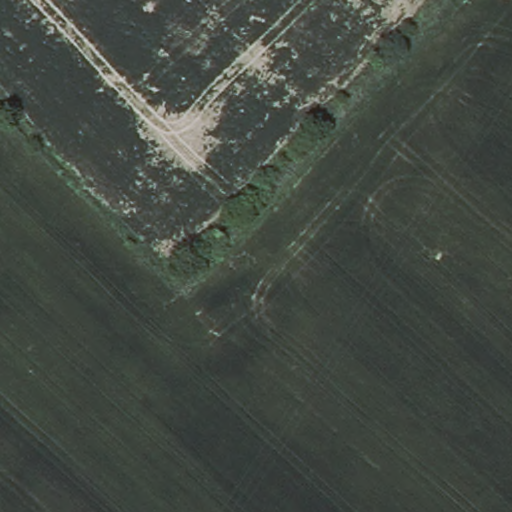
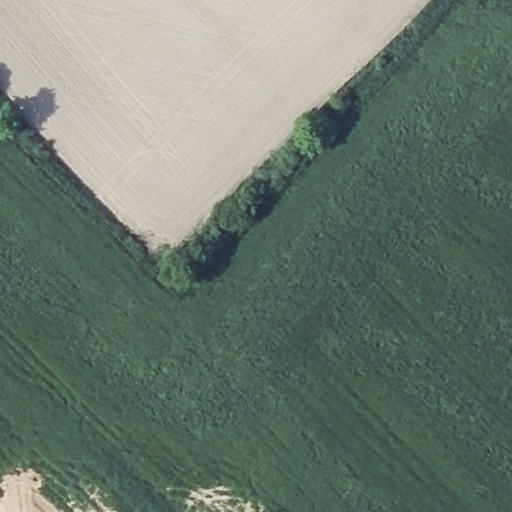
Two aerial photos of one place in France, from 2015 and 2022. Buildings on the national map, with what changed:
[]

